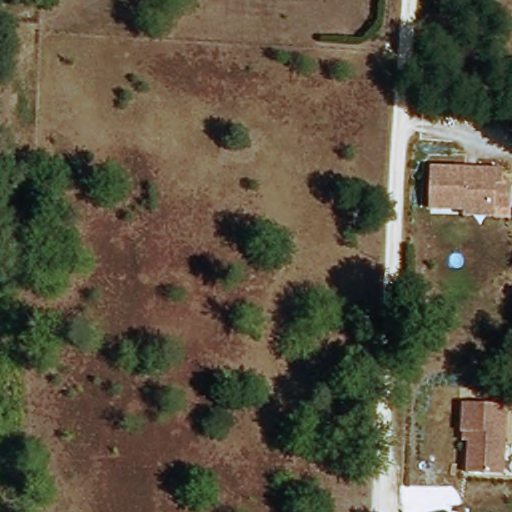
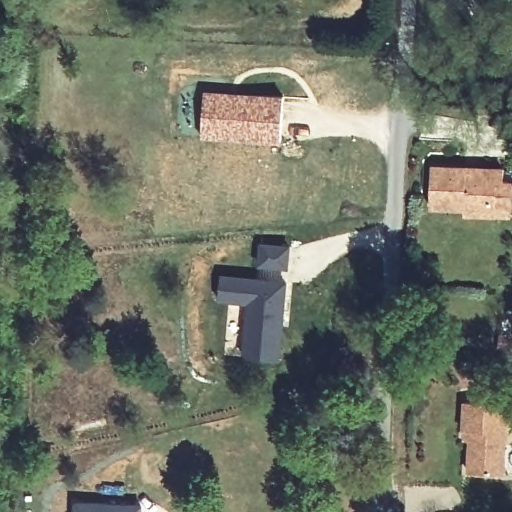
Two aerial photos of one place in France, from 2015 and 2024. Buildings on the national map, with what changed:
new [(204,137),(206,91),(284,95),(281,140),(204,137)]
unchanged [(470,205),(436,204),(437,164),(473,165),(472,169),(480,169),(481,165),(510,166),(509,179),(512,179),(512,202),(502,202),(502,211),(470,209),(470,205)]
new [(222,275),(289,281),(282,359),(244,356),(249,303),(220,301),(222,275)]
unchanged [(466,442),(460,442),(460,405),(508,406),(506,472),(467,471),(466,442)]
new [(143,503),(143,512),(74,512),(75,500),(143,503)]

